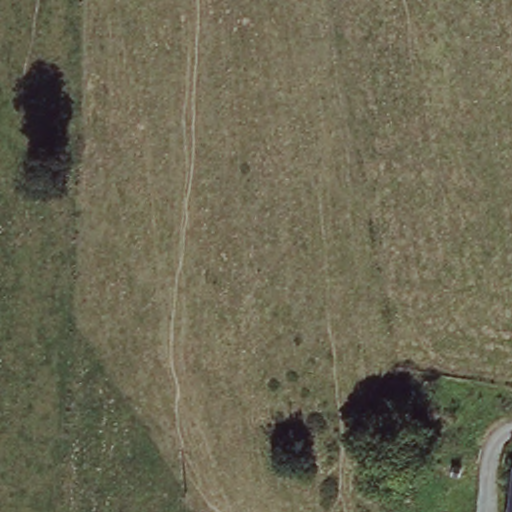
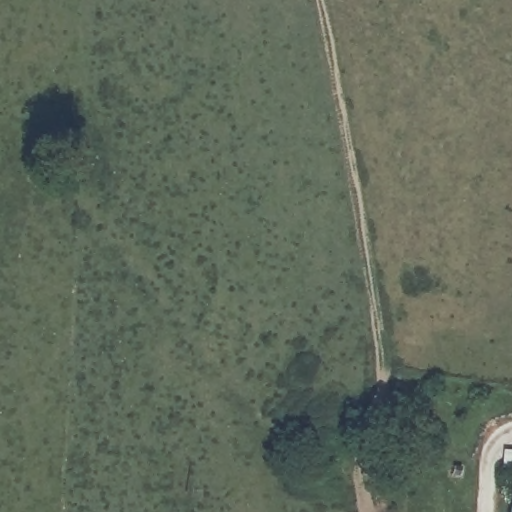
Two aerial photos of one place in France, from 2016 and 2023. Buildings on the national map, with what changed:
unchanged [(512,503),(512,512),(511,512),(512,503)]

